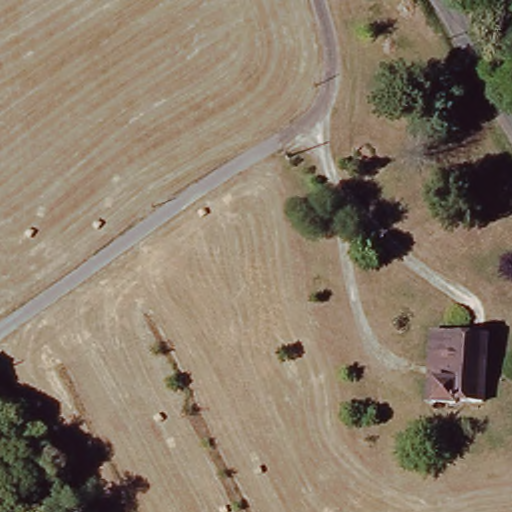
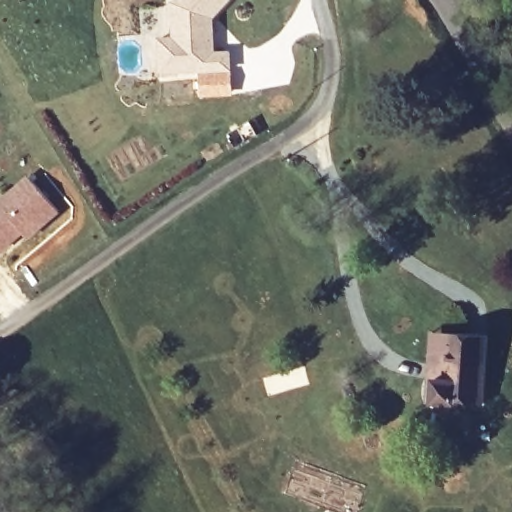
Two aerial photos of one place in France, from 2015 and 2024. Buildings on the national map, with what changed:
new [(172,3),(175,0),(226,0),(211,17),(213,53),(229,52),(230,69),(176,71),(161,73),(159,40),(174,39),(172,3)]
new [(22,232),(0,252),(0,202),(29,177),(57,211),(37,229),(27,238),(22,232)]
unchanged [(448,386),(453,335),(490,338),(483,408),(435,406),(437,386),(448,386)]

